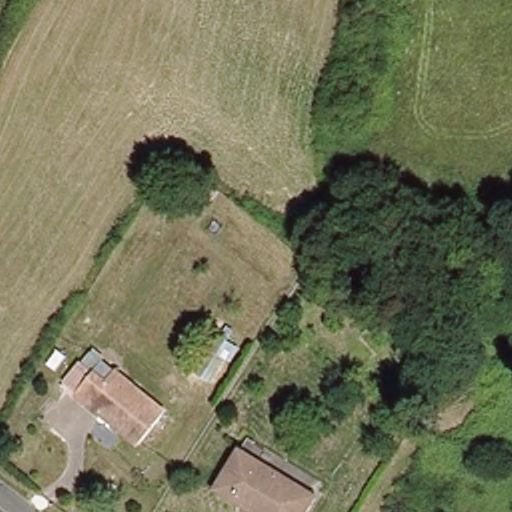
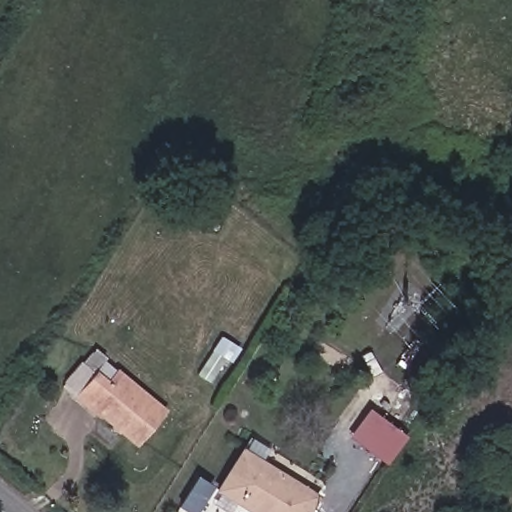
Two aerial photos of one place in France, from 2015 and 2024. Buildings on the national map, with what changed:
unchanged [(111,363),(162,409),(133,442),(74,386),(90,367),(99,377),(111,363)]
new [(370,408),(407,437),(386,464),(348,435),(370,408)]
unchanged [(299,512),(261,512),(216,482),(241,444),(314,491),(299,512)]

